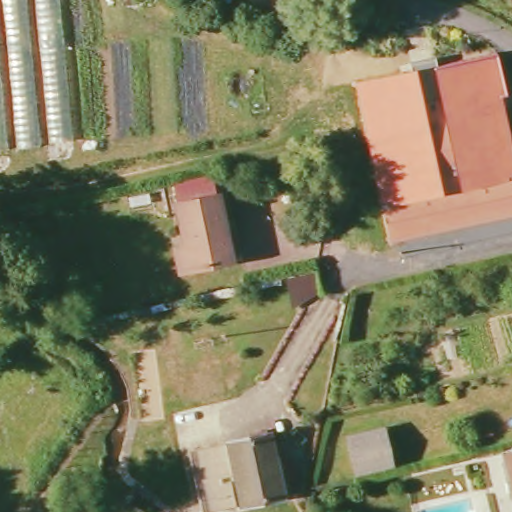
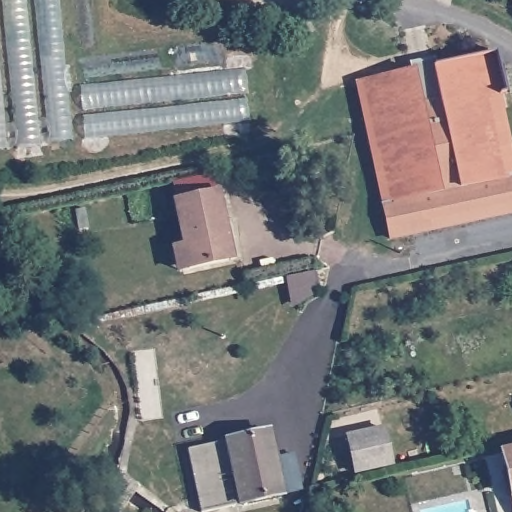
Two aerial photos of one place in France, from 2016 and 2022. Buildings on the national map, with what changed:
unchanged [(0,146),(0,0),(57,0),(72,138),(0,146)]
new [(250,120),(85,138),(82,85),(245,69),(250,120)]
unchanged [(355,85),(413,73),(419,108),(440,104),(437,90),(470,84),(495,99),(512,178),(512,186),(382,215),(355,85)]
unchanged [(382,215),(512,186),(512,215),(388,241),(382,215)]
unchanged [(172,204),(211,195),(225,262),(187,268),(172,204)]
unchanged [(393,464),(357,473),(348,436),(385,428),(393,464)]
unchanged [(227,442),(268,433),(282,495),(241,505),(227,442)]
unchanged [(502,453),(512,450),(512,495),(502,453)]

